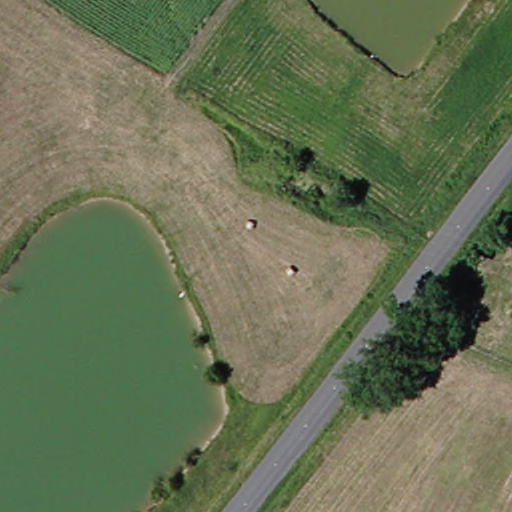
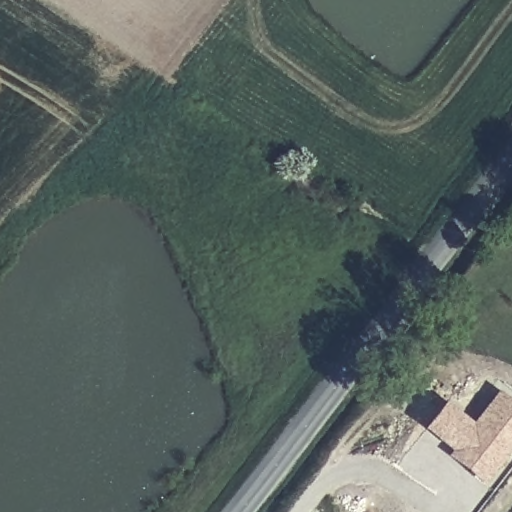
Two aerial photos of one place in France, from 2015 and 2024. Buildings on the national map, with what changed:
new [(483,486),(445,457),(450,452),(422,430),(445,402),(471,423),(497,391),(512,402),(512,451),(483,486)]

